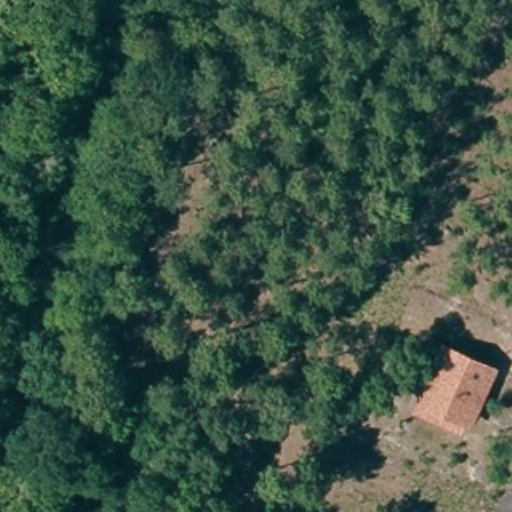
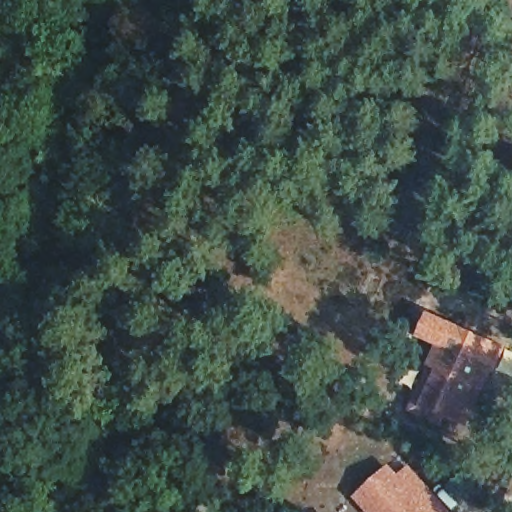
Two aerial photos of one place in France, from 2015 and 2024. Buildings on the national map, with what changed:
new [(440,344),(420,336),(430,313),(507,348),(497,369),(440,344)]
unchanged [(440,344),(497,369),(471,428),(465,425),(460,434),(411,411),(440,344)]
new [(412,473),(418,481),(445,512),(375,512),(362,497),(375,487),(392,472),(401,482),(412,473)]

